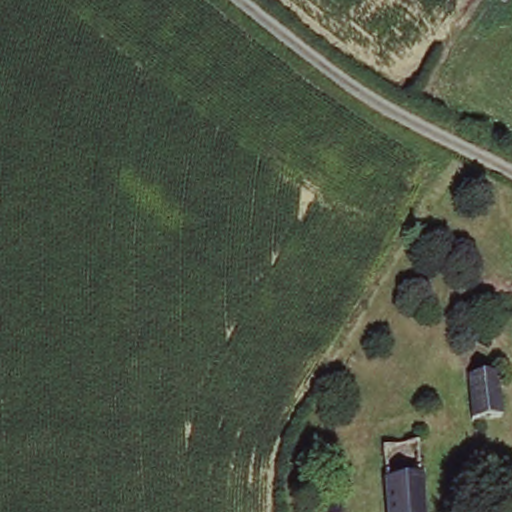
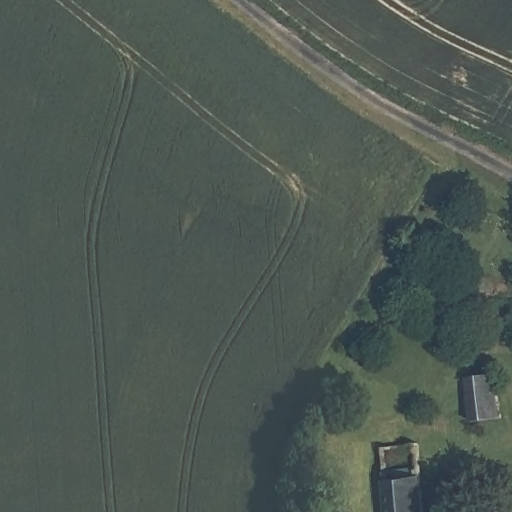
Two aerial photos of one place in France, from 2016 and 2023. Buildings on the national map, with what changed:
unchanged [(468,373),(498,372),(503,418),(469,422),(468,373)]
unchanged [(419,443),(426,512),(389,512),(383,445),(419,443)]

